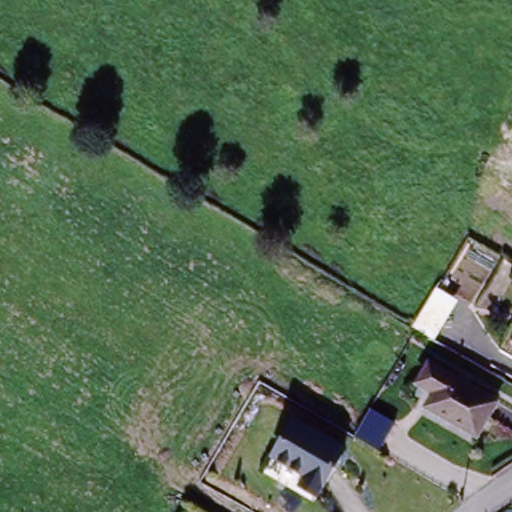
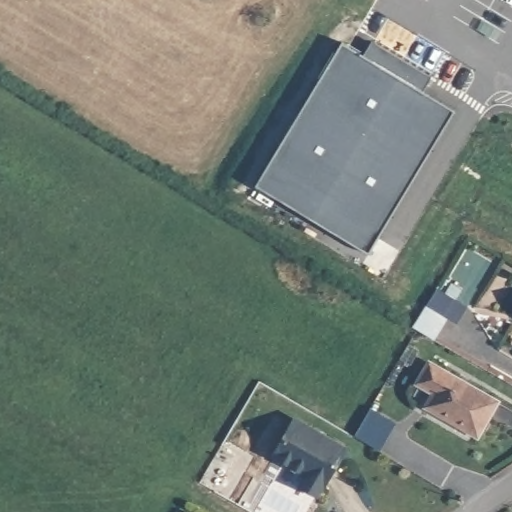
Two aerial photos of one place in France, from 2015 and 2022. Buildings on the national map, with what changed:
new [(252,187),(339,42),(363,57),(371,43),(425,76),(417,89),(453,111),(366,255),(252,187)]
new [(435,291),(454,302),(433,337),(411,327),(435,291)]
unchanged [(444,368),(492,395),(474,425),(427,397),(444,368)]
unchanged [(369,407),(393,420),(377,450),(352,435),(369,407)]
unchanged [(346,448),(318,494),(299,477),(305,469),(271,449),(292,415),(346,448)]

